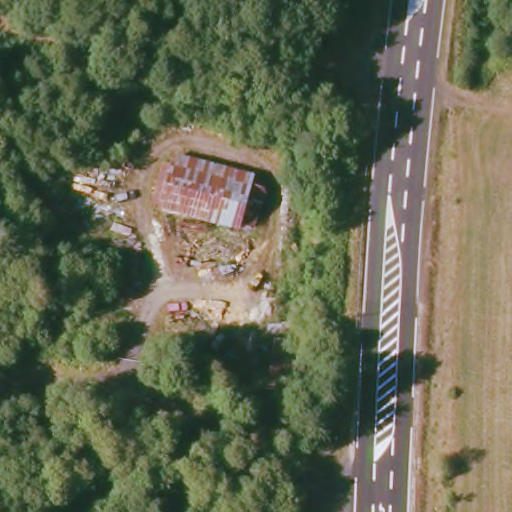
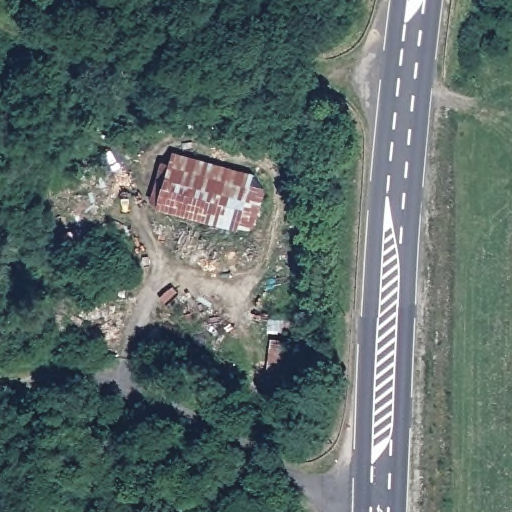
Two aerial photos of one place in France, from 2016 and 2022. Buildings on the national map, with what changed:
unchanged [(255,173),(252,185),(269,192),(257,236),(240,231),(162,206),(175,155),(255,173)]

